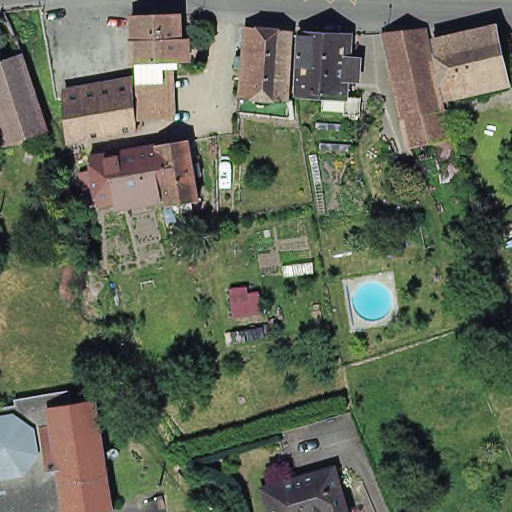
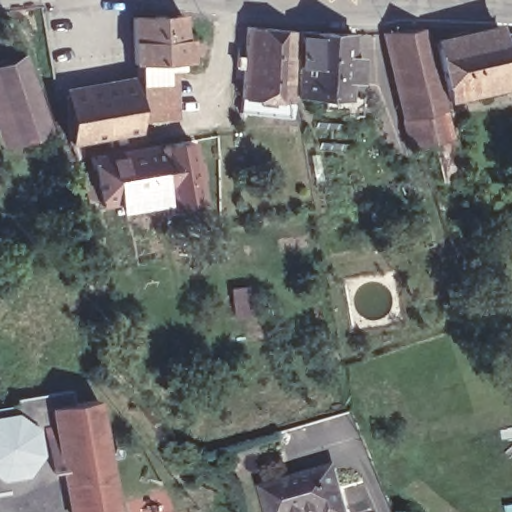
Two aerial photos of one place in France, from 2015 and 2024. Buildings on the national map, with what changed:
unchanged [(181,15),(182,32),(183,60),(162,61),(150,62),(133,62),(132,17),(151,16),(181,15)]
unchanged [(240,107),(241,92),(244,58),(247,21),(293,25),(290,89),(288,96),(271,95),(270,110),(240,107)]
unchanged [(400,75),(390,28),(431,24),(439,60),(442,71),(402,81),(400,75)]
unchanged [(352,29),(350,60),(300,59),(300,25),(352,29)]
unchanged [(498,27),(502,40),(511,82),(452,95),(448,76),(447,65),(440,40),(455,36),(462,35),(470,34),(491,29),(498,27)]
unchanged [(5,144),(0,130),(0,61),(17,54),(34,104),(42,130),(12,141),(5,144)]
unchanged [(361,92),(360,110),(345,109),(347,98),(347,94),(342,94),(327,93),(299,91),(300,64),(300,59),(350,60),(348,91),(354,92),(361,92)]
unchanged [(165,119),(143,120),(140,120),(138,91),(137,80),(137,64),(150,63),(163,62),(165,90),(165,112),(165,119)]
unchanged [(451,111),(455,133),(415,142),(414,138),(407,105),(402,81),(442,71),(451,111)]
unchanged [(66,96),(80,94),(135,84),(137,115),(138,129),(117,133),(89,137),(69,141),(66,96)]
unchanged [(460,135),(467,174),(449,178),(447,171),(440,139),(458,135),(460,135)]
unchanged [(167,192),(158,145),(190,140),(200,200),(200,209),(170,215),(169,205),(167,192)]
unchanged [(91,157),(158,145),(167,192),(126,199),(99,204),(98,200),(88,200),(81,172),(93,170),(91,157)]
unchanged [(77,398),(47,403),(65,512),(0,512),(0,397),(75,385),(77,398)]
unchanged [(47,403),(77,398),(95,395),(114,505),(69,512),(65,512),(47,403)]
unchanged [(328,505),(327,497),(296,506),(298,512),(277,512),(265,468),(335,450),(348,499),(328,505)]
unchanged [(352,512),(298,512),(296,506),(327,497),(328,505),(348,499),(352,512)]

